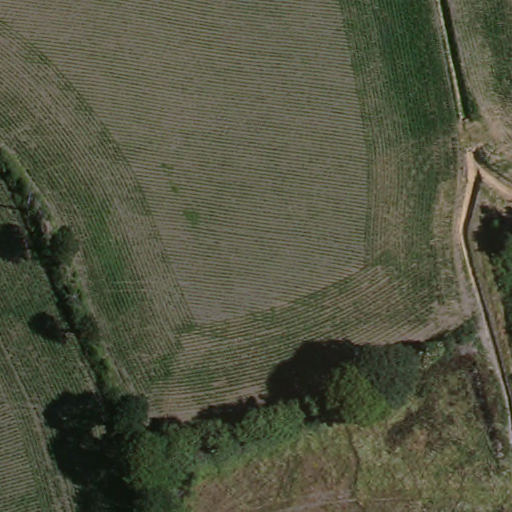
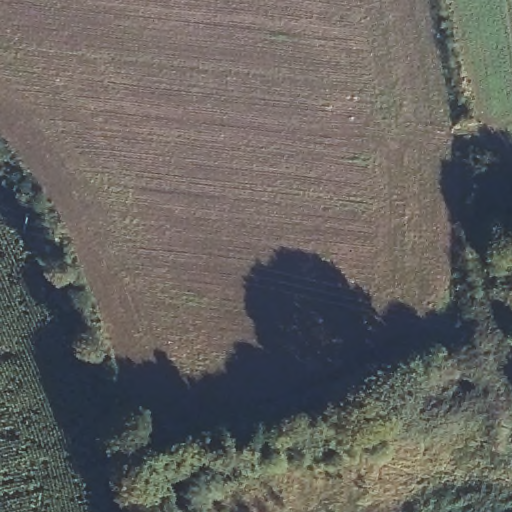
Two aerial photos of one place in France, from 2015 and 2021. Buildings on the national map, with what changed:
[]

